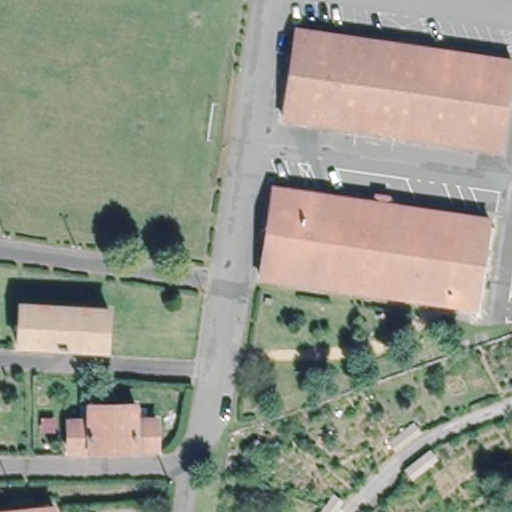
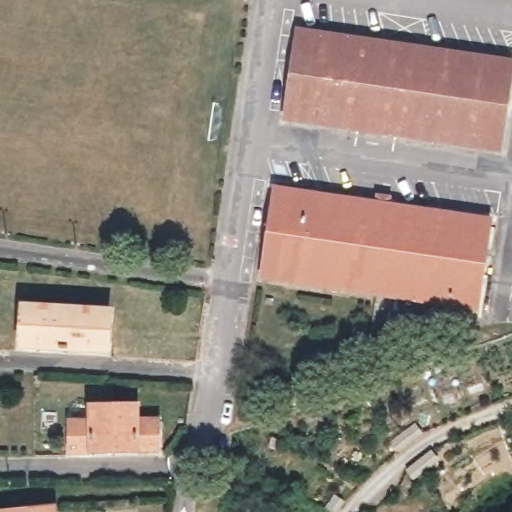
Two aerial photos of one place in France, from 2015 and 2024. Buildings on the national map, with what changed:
unchanged [(296,30),(508,62),(495,147),(283,115),(296,30)]
unchanged [(278,189),(490,222),(476,311),(264,278),(278,189)]
unchanged [(105,346),(19,342),(21,302),(107,307),(105,346)]
unchanged [(155,427),(155,453),(69,453),(69,428),(88,428),(88,414),(135,414),(136,427),(155,427)]
unchanged [(53,512),(0,512),(0,505),(51,498),(53,512)]

